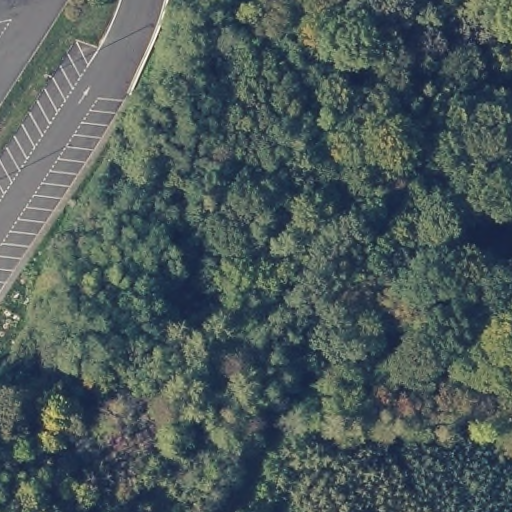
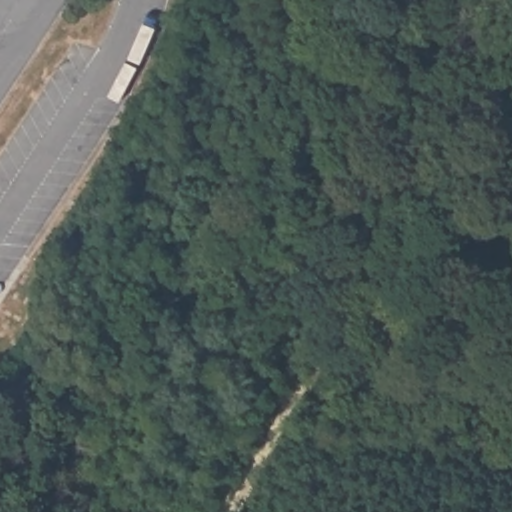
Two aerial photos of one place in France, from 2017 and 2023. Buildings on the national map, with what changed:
unchanged [(15,334),(0,355),(0,323),(15,334)]

